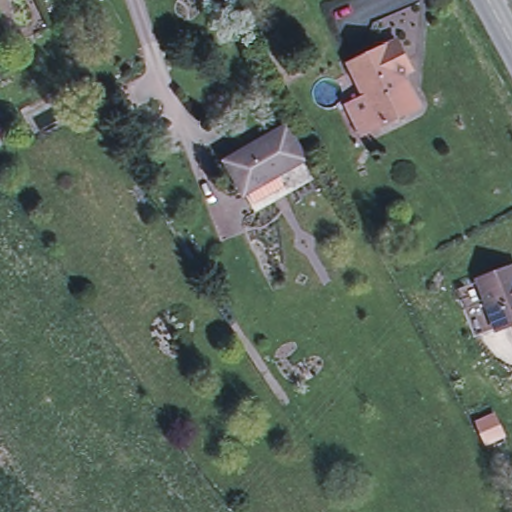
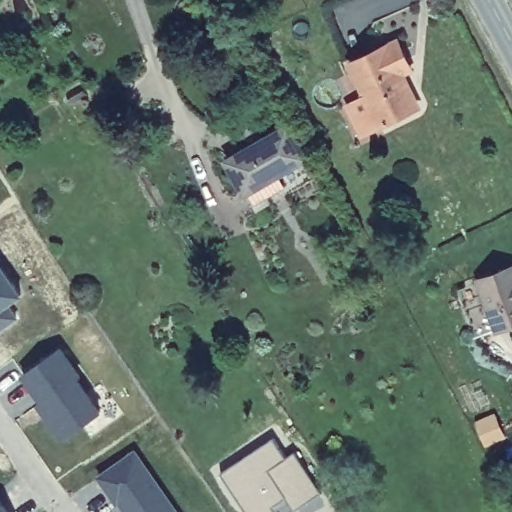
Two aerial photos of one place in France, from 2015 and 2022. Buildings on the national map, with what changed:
unchanged [(397,41),(411,70),(401,74),(416,106),(398,115),(367,56),(397,41)]
unchanged [(349,64),(367,56),(398,115),(379,124),(360,134),(345,103),(363,92),(349,64)]
unchanged [(303,157),(273,173),(272,171),(241,187),(225,157),(285,125),(303,157)]
new [(10,307),(18,320),(0,332),(0,270),(20,298),(10,307)]
unchanged [(512,270),(512,324),(500,328),(482,280),(512,270)]
new [(60,350),(81,380),(77,383),(101,415),(56,442),(32,408),(37,405),(20,380),(60,350)]
new [(272,442),(284,462),(293,456),(320,495),(291,512),(290,512),(285,501),(271,508),(273,512),(244,512),(220,476),(272,442)]
new [(135,452),(177,512),(122,512),(118,506),(115,508),(95,480),(135,452)]
new [(0,491),(15,512),(0,512),(0,491)]

